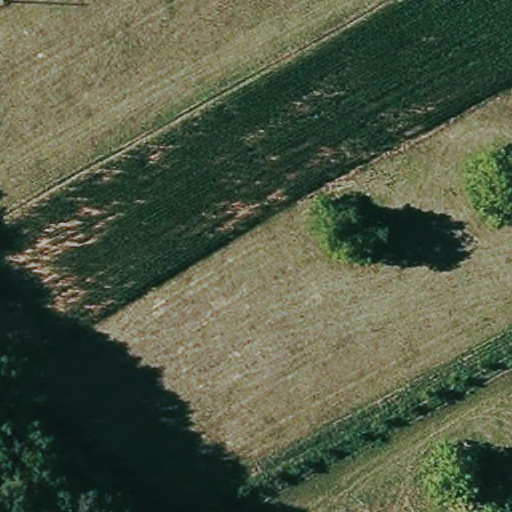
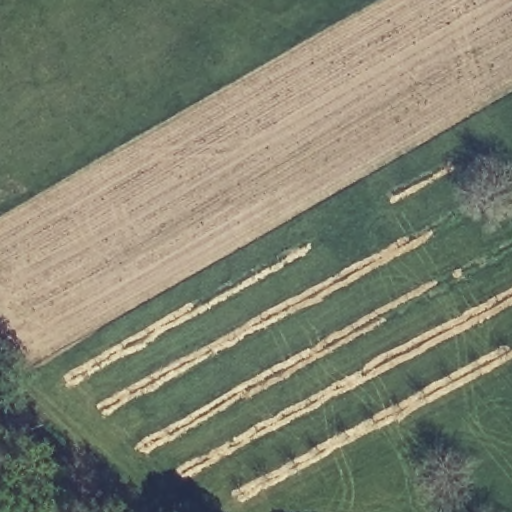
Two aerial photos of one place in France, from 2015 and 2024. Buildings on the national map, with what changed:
[]

